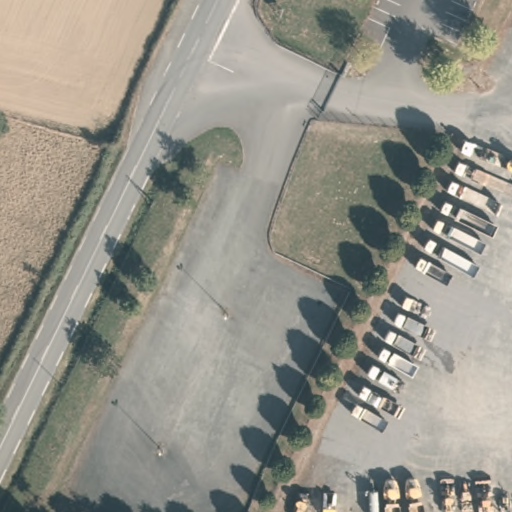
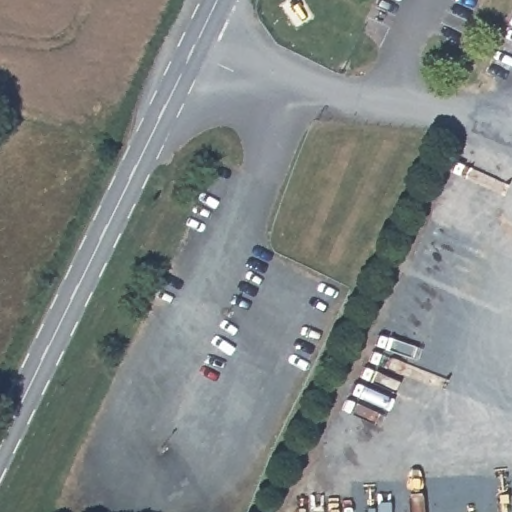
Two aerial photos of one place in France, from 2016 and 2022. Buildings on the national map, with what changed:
[]

